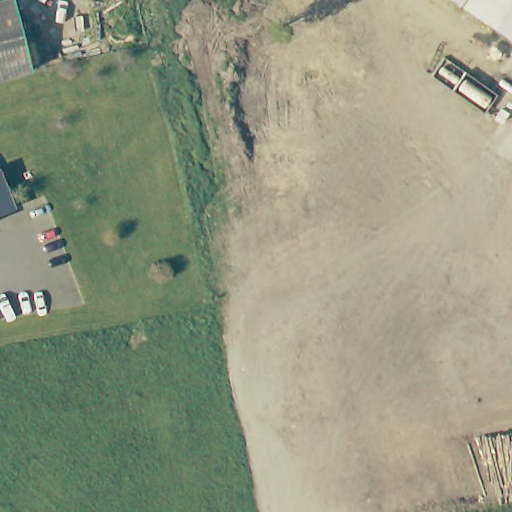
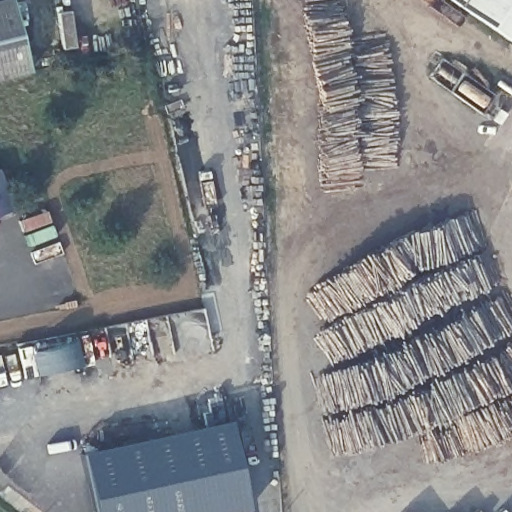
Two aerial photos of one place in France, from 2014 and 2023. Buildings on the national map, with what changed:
unchanged [(447,0),(512,0),(512,46),(511,47),(447,0)]
unchanged [(27,76),(0,83),(0,8),(7,6),(27,76)]
unchanged [(22,209),(0,218),(0,172),(6,169),(22,209)]
new [(35,421),(0,428),(0,383),(26,377),(35,421)]
new [(248,509),(235,512),(96,512),(82,451),(229,419),(248,509)]

